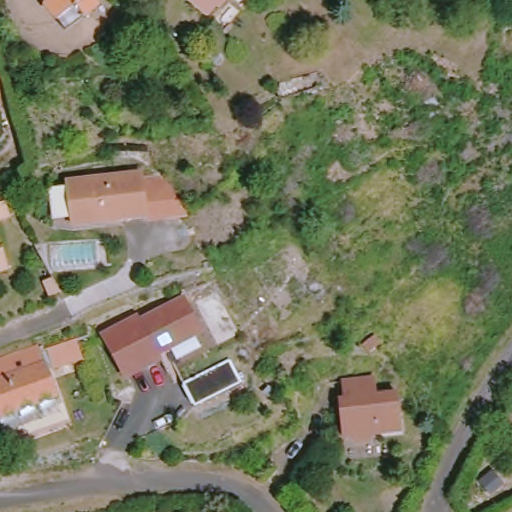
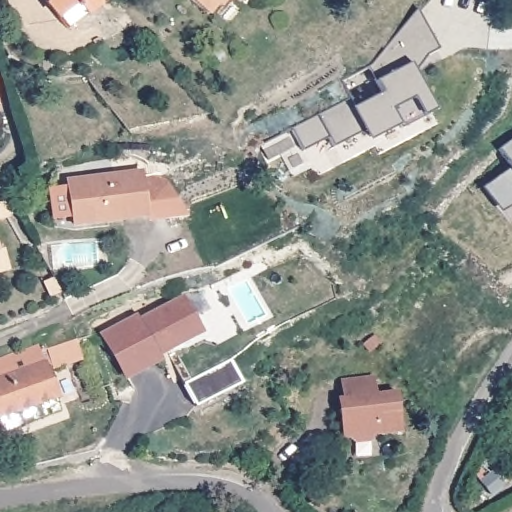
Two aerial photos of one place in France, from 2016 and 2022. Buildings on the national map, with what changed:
unchanged [(38,0),(91,0),(58,25),(38,0)]
unchanged [(212,2),(202,13),(186,0),(218,0),(215,5),(212,2)]
new [(292,129),(317,115),(350,100),(355,109),(383,94),(377,81),(370,67),(417,10),(440,50),(426,57),(414,71),(435,112),(423,117),(400,129),(398,125),(370,142),(363,131),(334,145),(329,137),(303,151),(292,129)]
unchanged [(142,210),(69,220),(63,177),(136,167),(142,210)]
unchanged [(0,225),(0,210),(12,206),(15,220),(0,225)]
unchanged [(0,261),(0,243),(5,260),(0,261)]
unchanged [(194,325),(158,345),(157,342),(150,346),(155,353),(120,371),(97,330),(131,313),(132,316),(175,294),(194,325)]
unchanged [(45,358),(68,351),(73,350),(80,368),(75,370),(51,378),(45,358)]
unchanged [(0,369),(10,366),(36,357),(37,357),(42,375),(43,375),(55,406),(0,426),(0,369)]
unchanged [(373,389),(395,386),(398,423),(374,427),(375,431),(355,435),(345,431),(339,392),(342,392),(341,375),(371,371),(373,389)]

